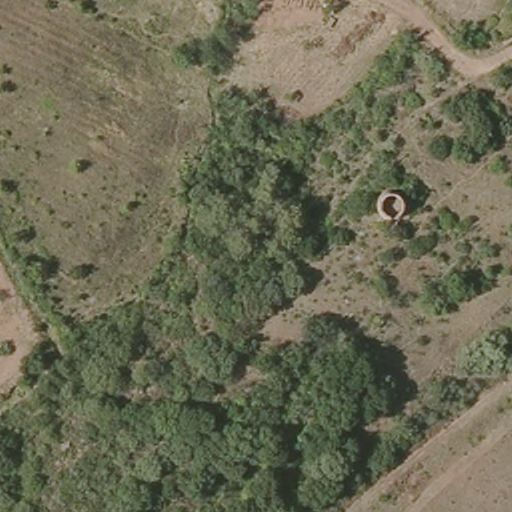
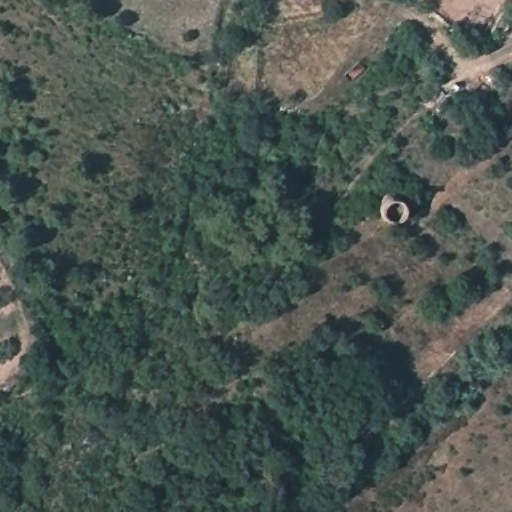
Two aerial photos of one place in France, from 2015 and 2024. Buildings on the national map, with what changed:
unchanged [(396,208),(391,213),(386,216),(379,215),(374,211),(371,204),(374,197),(378,193),(385,191),(391,192),(396,196),(396,203),(396,208)]

